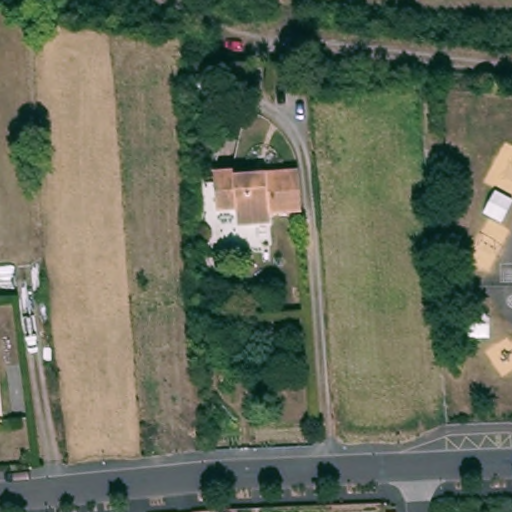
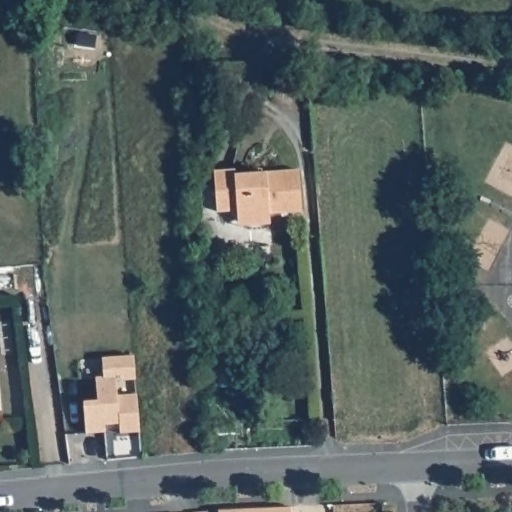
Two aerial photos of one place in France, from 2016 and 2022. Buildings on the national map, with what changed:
unchanged [(241,170),(242,176),(304,172),(306,212),(274,214),(275,225),(243,228),(241,210),(220,212),(217,172),(241,170)]
new [(98,409),(95,386),(103,385),(101,366),(133,363),(134,385),(115,388),(117,403),(136,400),(140,438),(121,440),(120,430),(105,432),(106,440),(87,442),(84,410),(98,409)]
unchanged [(1,422),(0,423),(0,410),(1,422)]

